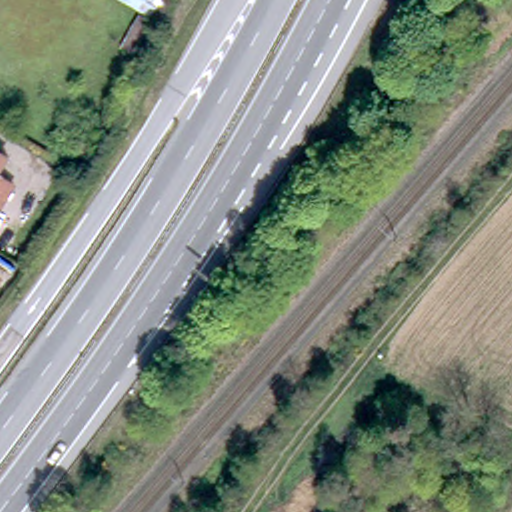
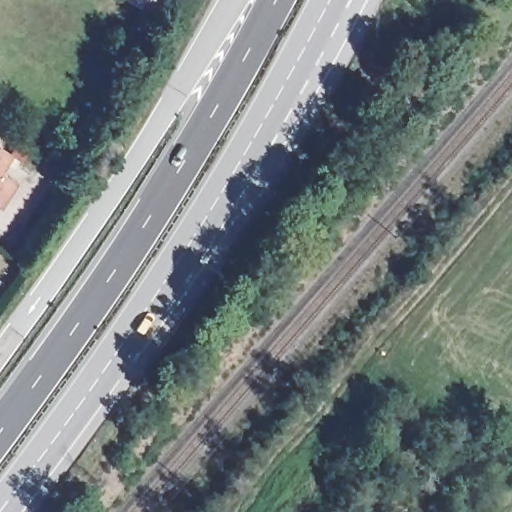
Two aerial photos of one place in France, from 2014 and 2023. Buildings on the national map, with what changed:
unchanged [(159,4),(152,17),(122,0),(161,0),(159,4)]
unchanged [(0,166),(0,147),(8,152),(0,166)]
unchanged [(15,178),(3,199),(0,197),(0,169),(15,178)]
unchanged [(16,291),(0,281),(0,257),(26,275),(16,291)]

